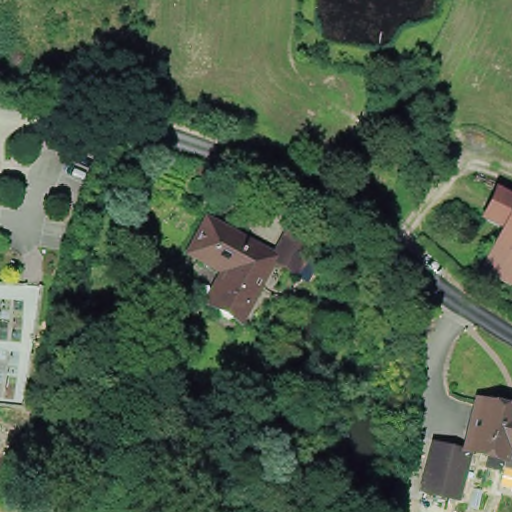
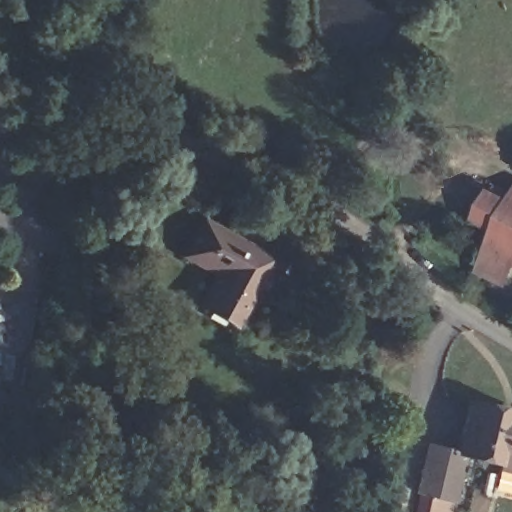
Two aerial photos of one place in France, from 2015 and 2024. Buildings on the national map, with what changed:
unchanged [(511,194),(512,191),(512,195),(511,194)]
unchanged [(505,281),(479,268),(492,240),(490,239),(495,229),(476,222),(489,193),(507,202),(511,194),(512,195),(512,267),(505,281)]
unchanged [(236,321),(201,301),(218,270),(184,251),(203,218),(241,239),(246,245),(263,254),(247,282),(254,286),(236,321)]
unchanged [(291,235),(309,245),(293,274),(275,265),(291,235)]
unchanged [(498,472),(500,462),(462,453),(459,452),(469,404),(504,411),(512,413),(511,420),(512,420),(512,475),(498,472)]
unchanged [(450,503),(418,495),(429,445),(459,452),(462,453),(450,503)]

